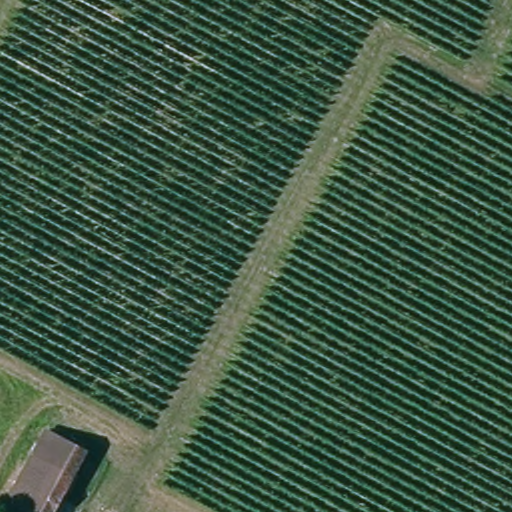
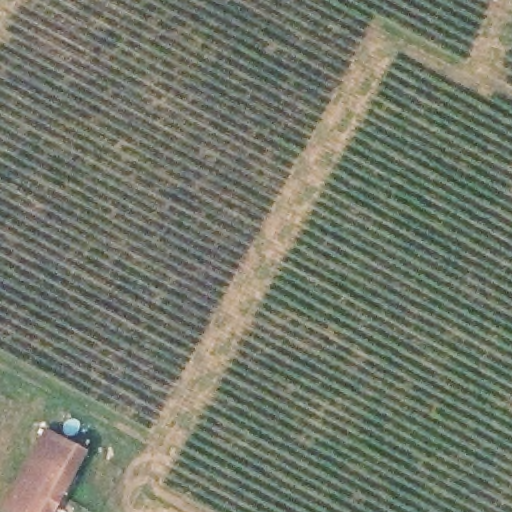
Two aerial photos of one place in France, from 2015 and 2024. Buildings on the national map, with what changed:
unchanged [(85,447),(53,512),(8,512),(4,510),(45,425),(85,447)]

